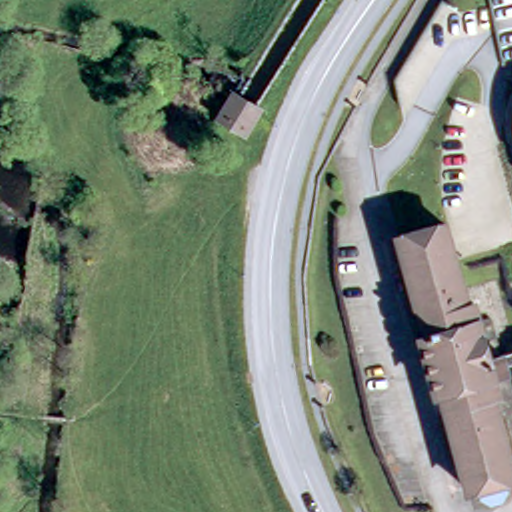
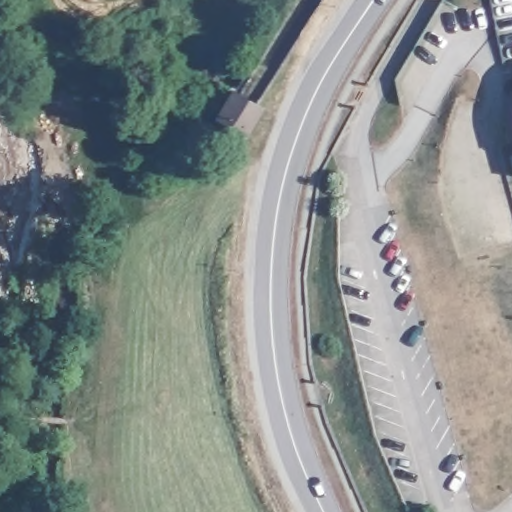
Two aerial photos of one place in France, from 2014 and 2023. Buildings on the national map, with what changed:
unchanged [(261,105),(245,131),(215,115),(231,88),(254,101),(261,105)]
unchanged [(508,108),(512,96),(512,139),(508,124),(508,108)]
new [(399,236),(417,231),(412,215),(404,217),(395,173),(439,163),(449,208),(442,209),(470,306),(475,304),(479,320),(492,316),(502,353),(505,353),(511,373),(497,377),(501,392),(495,394),(512,452),(512,477),(509,478),(511,487),(506,497),(494,500),(484,495),(482,486),(472,489),(444,391),(439,392),(423,335),(427,334),(399,236)]
demolished [(501,378),(487,382),(491,397),(485,399),(509,480),(499,483),(502,492),(496,502),(484,505),(474,500),(472,491),(462,494),(434,396),(429,397),(413,340),(417,339),(389,241),(407,236),(402,220),(394,222),(385,178),(429,168),(439,213),(432,214),(460,311),(465,309),(469,325),(482,321),(492,358),(495,358),(498,368),(501,378)]
unchanged [(512,352),(512,356),(511,353),(512,352)]

